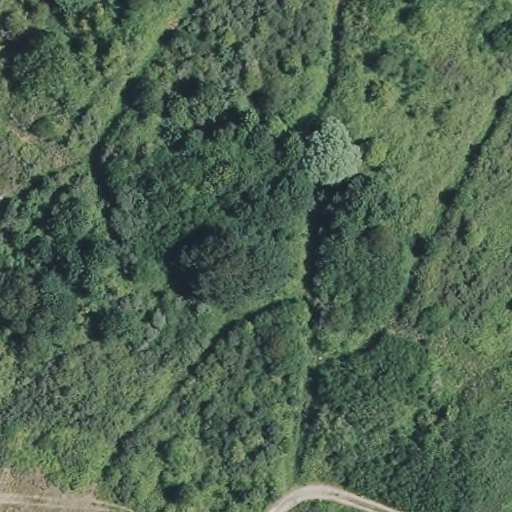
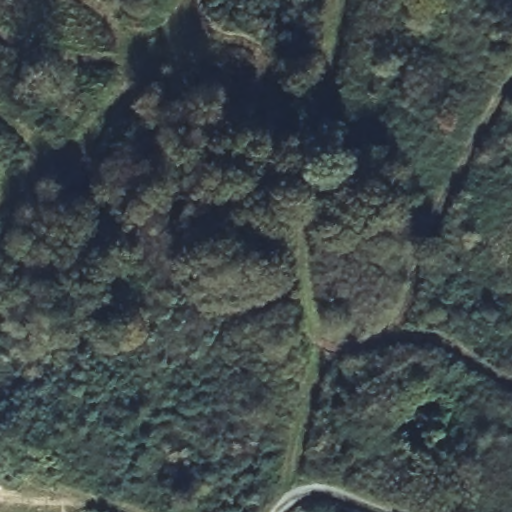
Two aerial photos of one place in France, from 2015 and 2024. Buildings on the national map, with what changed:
[]

